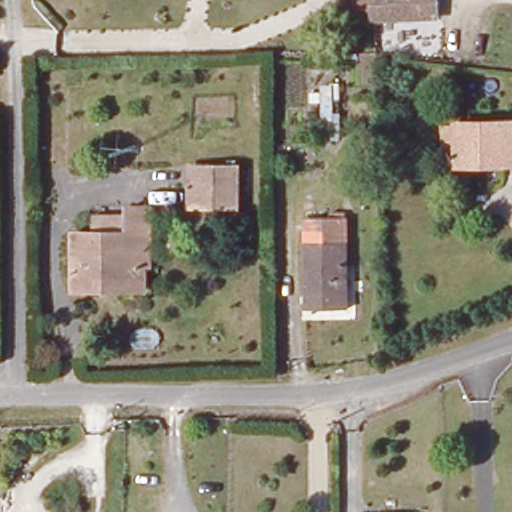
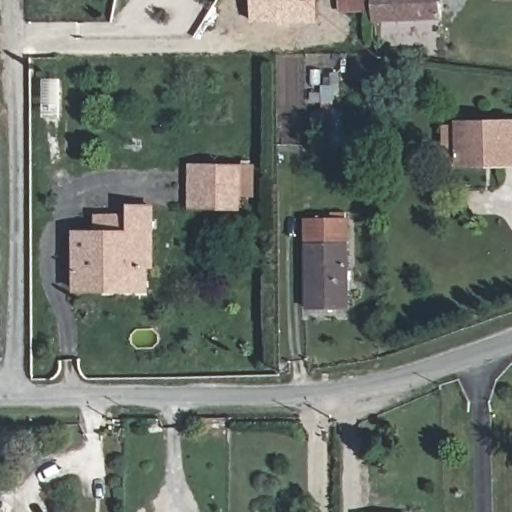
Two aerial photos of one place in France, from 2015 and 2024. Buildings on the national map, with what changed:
new [(252,0),(316,0),(316,22),(252,22),(252,0)]
unchanged [(371,0),(434,0),(434,20),(375,20),(371,20),(371,0)]
unchanged [(457,131),(457,124),(512,123),(512,165),(497,165),(497,162),(476,162),(476,165),(458,165),(458,159),(442,159),(442,131),(457,131)]
unchanged [(237,207),(192,207),(192,165),(236,166),(237,207)]
unchanged [(101,290),(75,290),(74,234),(95,233),(95,215),(129,216),(129,207),(151,206),(152,266),(142,266),(143,278),(143,289),(101,290)]
unchanged [(343,217),(346,309),(307,310),(306,219),(343,217)]

